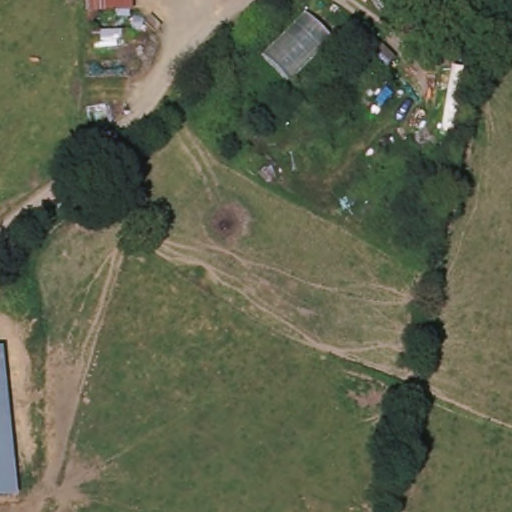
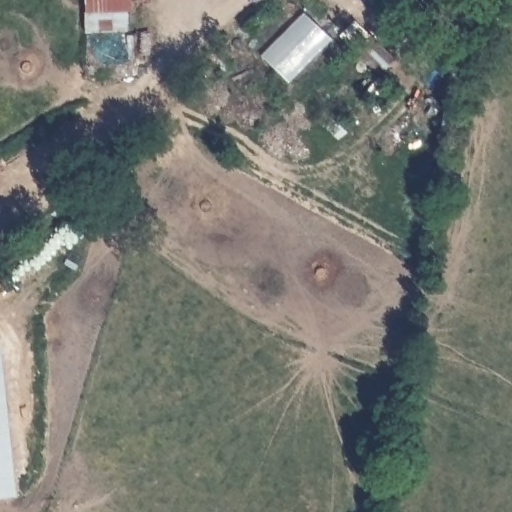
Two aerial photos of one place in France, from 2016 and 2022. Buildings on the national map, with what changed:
unchanged [(129,32),(84,33),(84,0),(131,0),(129,32)]
unchanged [(389,3),(384,1),(383,0),(391,0),(389,3)]
unchanged [(268,147),(256,138),(299,98),(310,108),(268,147)]
unchanged [(3,346),(17,493),(0,496),(0,346),(3,346)]

